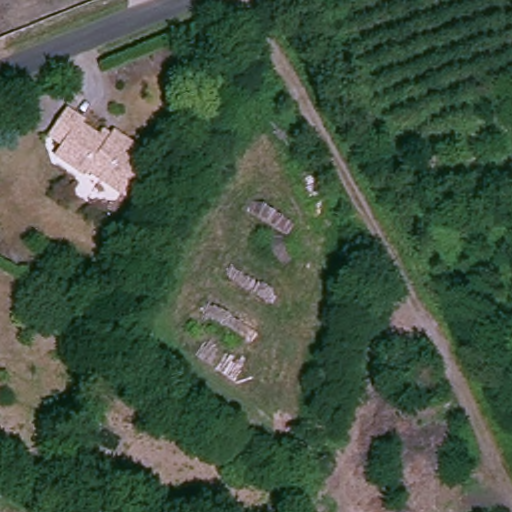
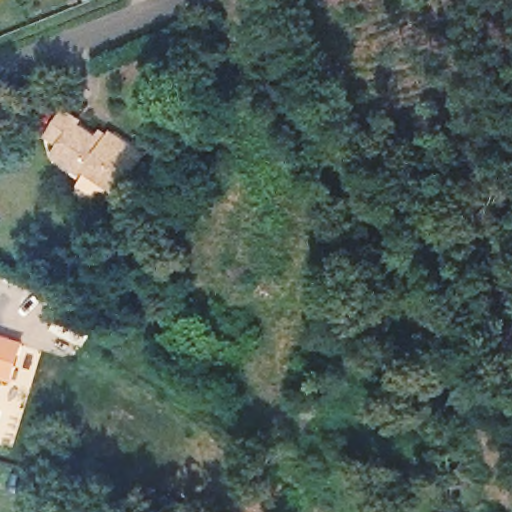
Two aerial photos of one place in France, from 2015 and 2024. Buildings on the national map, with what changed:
unchanged [(151,148),(125,190),(90,171),(88,178),(55,162),(61,147),(44,139),(60,109),(79,119),(77,127),(98,137),(102,130),(113,136),(117,130),(151,148)]
new [(15,383),(0,379),(0,334),(26,342),(15,383)]

